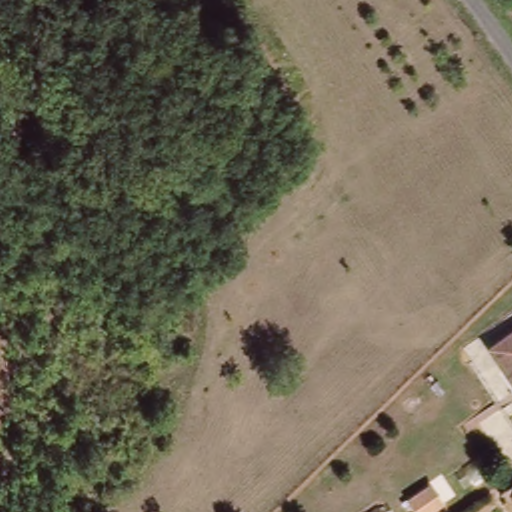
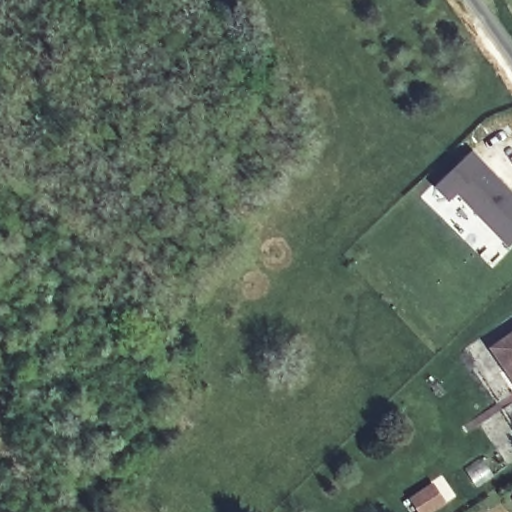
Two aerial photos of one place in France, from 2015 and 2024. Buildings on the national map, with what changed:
new [(512,190),(512,244),(462,191),(453,199),(439,185),(475,151),(512,190)]
unchanged [(512,335),(512,384),(489,351),(512,335)]
unchanged [(412,492),(433,478),(444,495),(422,509),(412,492)]
unchanged [(512,485),(512,493),(508,487),(512,485)]

